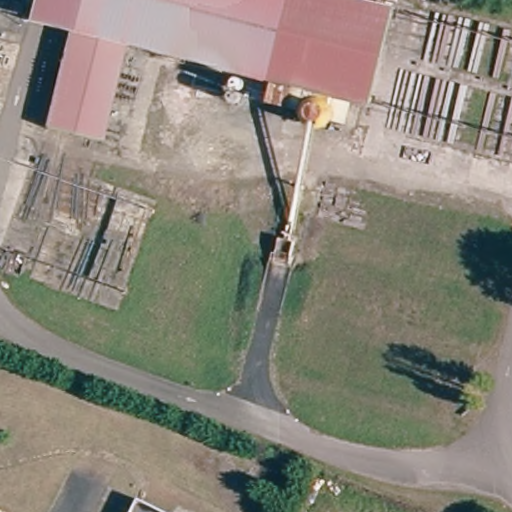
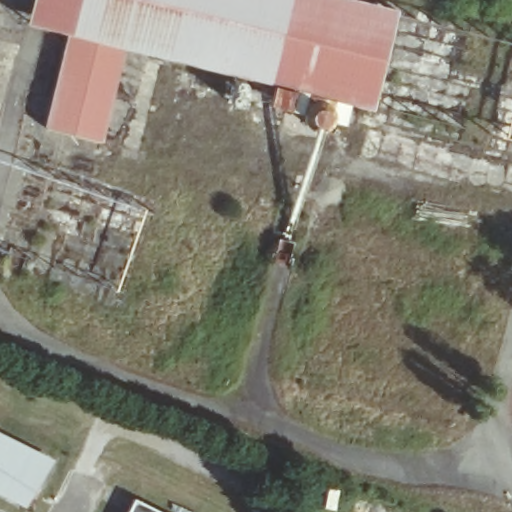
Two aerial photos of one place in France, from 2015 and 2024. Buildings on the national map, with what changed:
unchanged [(40,0),(79,0),(71,32),(35,24),(40,0)]
unchanged [(129,47),(71,32),(79,0),(286,0),(275,83),(129,47)]
unchanged [(398,10),(374,107),(350,102),(275,83),(286,0),(360,0),(372,3),(398,10)]
unchanged [(360,0),(373,0),(372,3),(360,0)]
unchanged [(129,47),(105,140),(47,125),(71,32),(129,47)]
unchanged [(350,102),(342,131),(315,123),(307,121),(267,111),(275,83),(350,102)]
unchanged [(315,123),(285,257),(290,258),(288,268),(267,263),(270,252),(275,254),(278,241),(281,241),(307,121),(315,123)]
new [(27,507),(0,494),(0,432),(55,460),(27,507)]
unchanged [(133,506),(145,512),(130,512),(133,506)]

